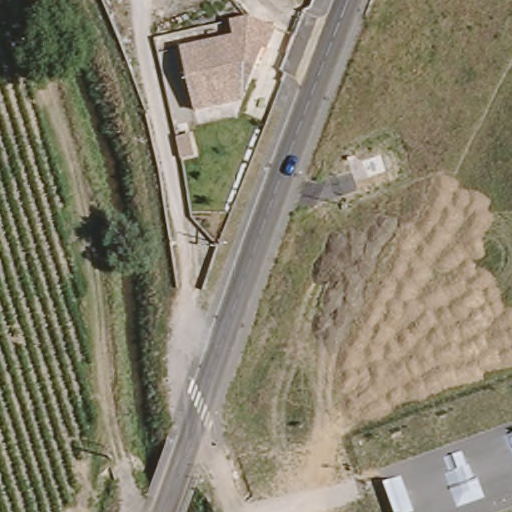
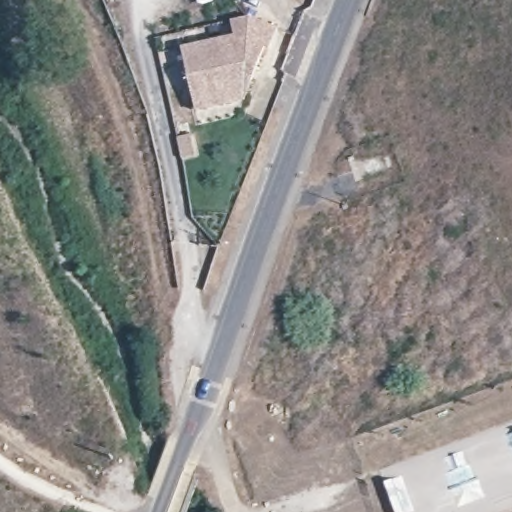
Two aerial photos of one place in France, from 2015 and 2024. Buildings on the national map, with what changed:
unchanged [(266,54),(250,84),(250,96),(193,107),(185,45),(233,37),(232,21),(256,17),(279,28),(266,54)]

